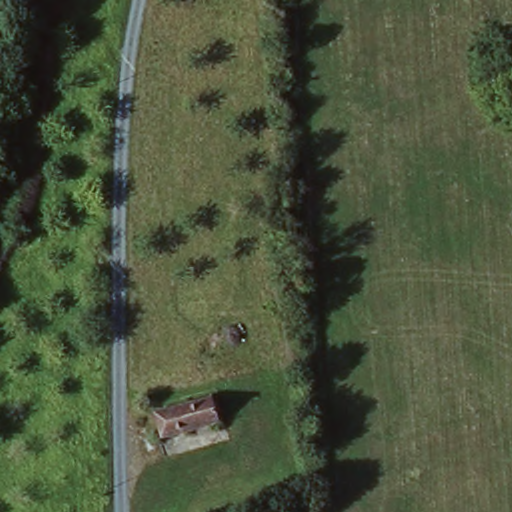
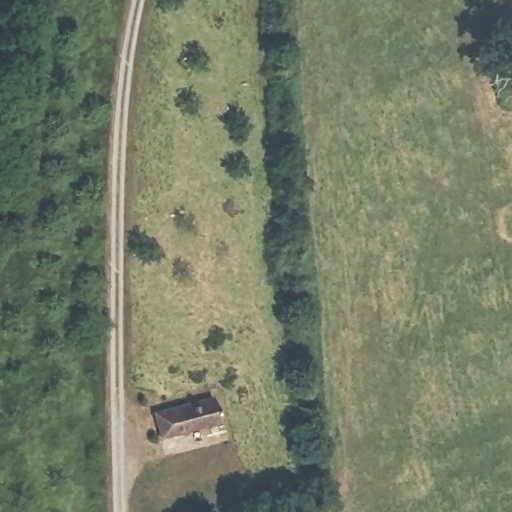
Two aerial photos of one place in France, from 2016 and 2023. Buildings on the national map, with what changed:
unchanged [(152,413),(165,411),(212,404),(216,428),(169,436),(156,438),(152,413)]

